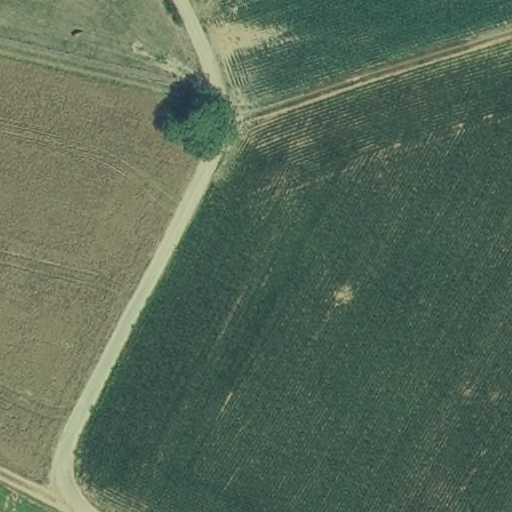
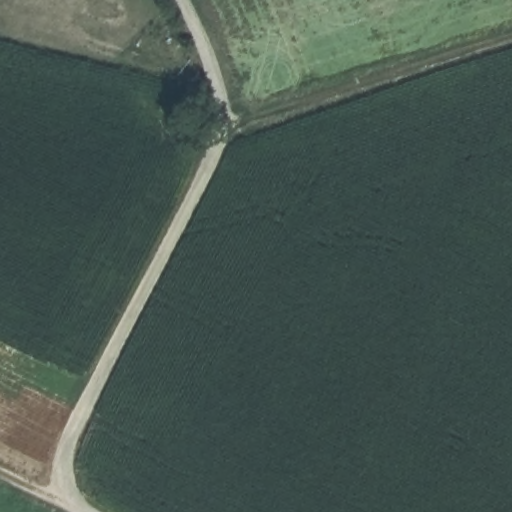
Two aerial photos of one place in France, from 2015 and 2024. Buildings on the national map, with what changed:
[]

